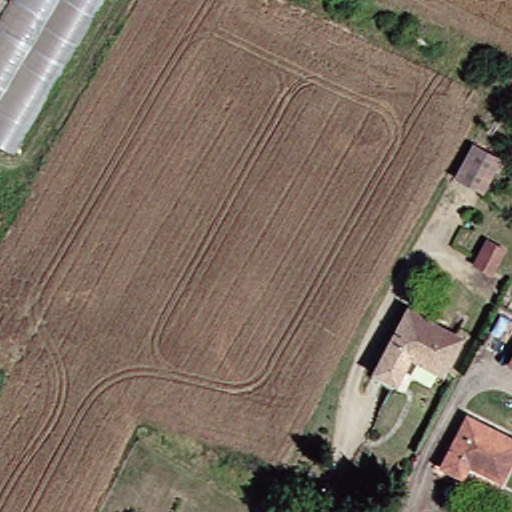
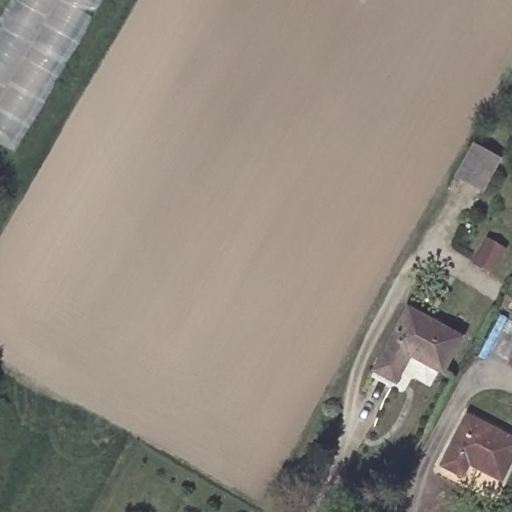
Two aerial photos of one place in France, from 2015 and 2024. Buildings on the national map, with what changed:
unchanged [(0,21),(13,0),(89,0),(3,146),(0,144),(0,21)]
unchanged [(447,178),(457,159),(466,144),(494,159),(475,194),(447,178)]
unchanged [(458,269),(468,250),(483,259),(473,277),(458,269)]
unchanged [(434,371),(401,353),(382,381),(363,369),(400,306),(453,334),(434,371)]
unchanged [(511,364),(512,363),(512,365),(511,364)]
unchanged [(486,476),(456,459),(450,473),(427,460),(456,409),(507,437),(486,476)]
unchanged [(290,506),(276,499),(281,487),(296,494),(290,506)]

